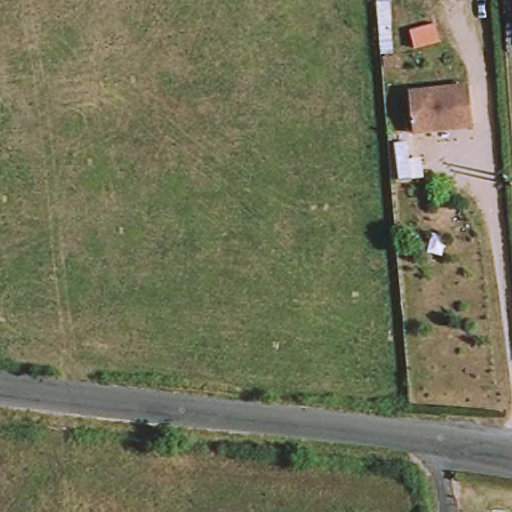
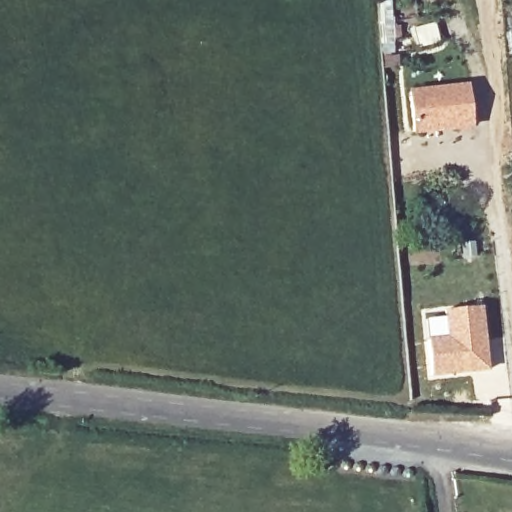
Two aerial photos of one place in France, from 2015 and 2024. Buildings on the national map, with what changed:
unchanged [(471,86),(475,126),(415,132),(411,92),(471,86)]
new [(443,314),(443,310),(483,305),(490,369),(431,377),(423,316),(443,314)]

